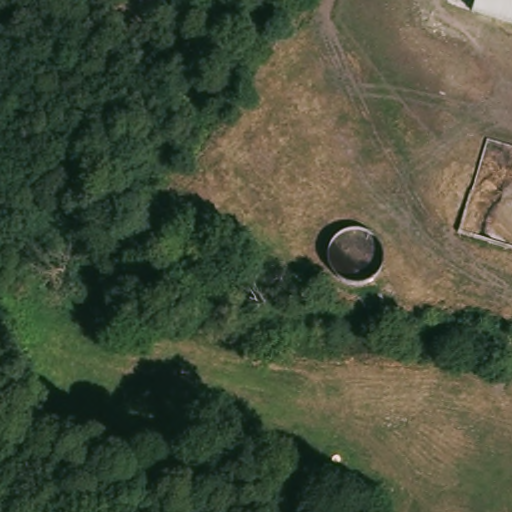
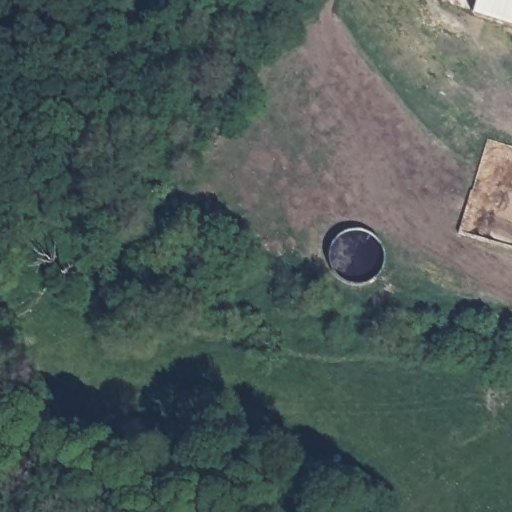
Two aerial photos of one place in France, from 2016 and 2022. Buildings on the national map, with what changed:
unchanged [(468,13),(472,0),(512,0),(512,27),(468,13)]

